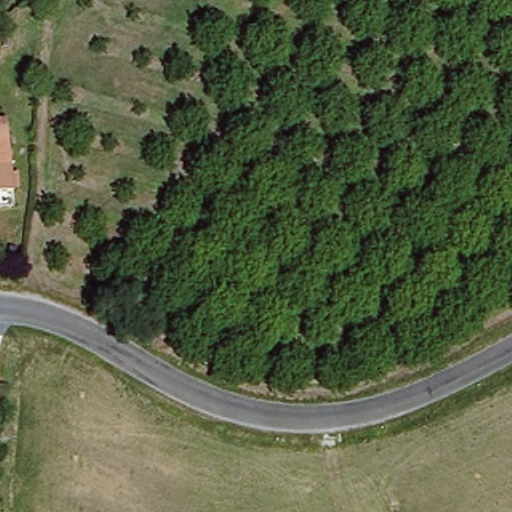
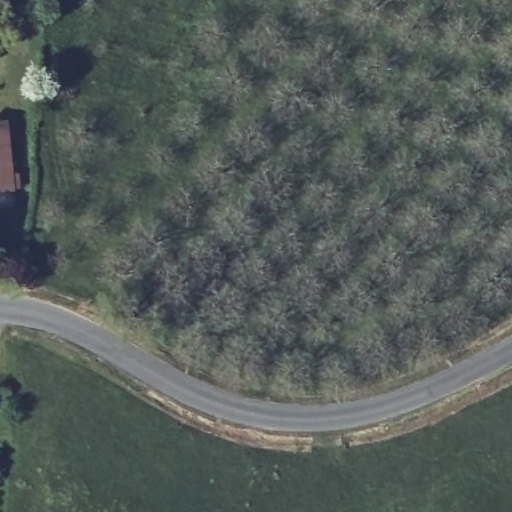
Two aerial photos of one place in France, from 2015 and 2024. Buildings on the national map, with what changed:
unchanged [(5,197),(0,197),(0,123),(3,123),(5,197)]

